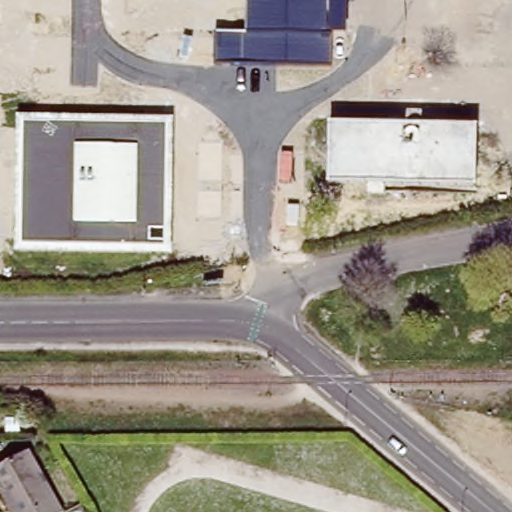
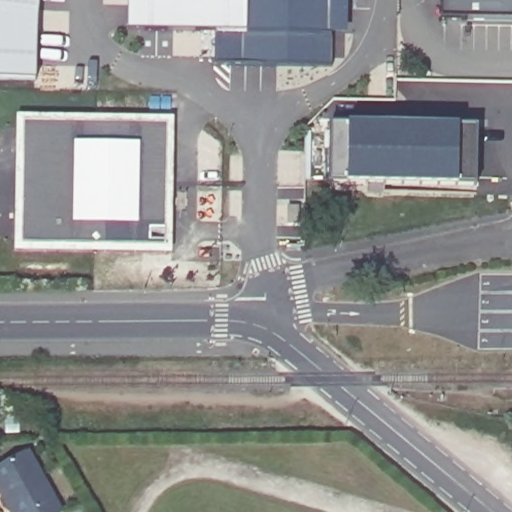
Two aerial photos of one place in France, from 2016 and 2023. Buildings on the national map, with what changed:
new [(0,79),(0,0),(38,0),(37,9),(35,79),(0,79)]
new [(245,5),(245,30),(218,30),(218,61),(208,62),(210,32),(126,30),(127,0),(245,0),(245,5)]
unchanged [(348,31),(331,33),(330,65),(218,61),(218,30),(245,30),(245,5),(245,0),(348,0),(348,31)]
new [(440,0),(512,0),(512,20),(440,19),(440,0)]
unchanged [(152,112),(152,131),(178,131),(178,227),(152,227),(152,246),(21,246),(21,112),(152,112)]
unchanged [(473,122),(475,184),(330,186),(329,125),(473,122)]
unchanged [(25,454),(58,512),(4,512),(0,505),(0,468),(25,454)]

